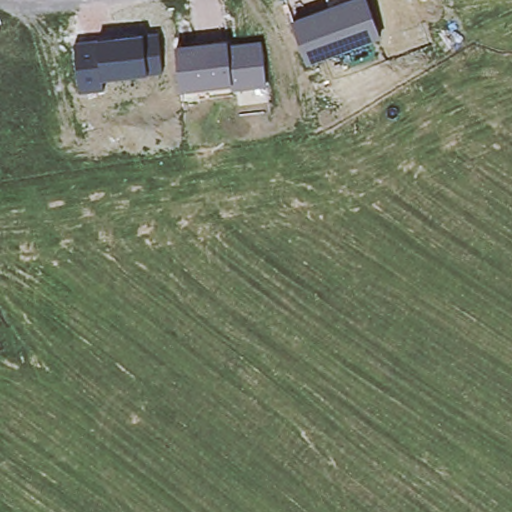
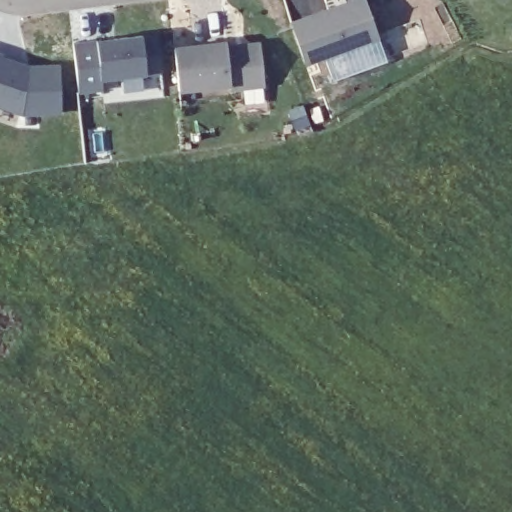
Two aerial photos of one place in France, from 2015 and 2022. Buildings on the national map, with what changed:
unchanged [(353,0),(367,0),(381,41),(308,65),(293,22),(353,0)]
unchanged [(76,43),(101,41),(146,36),(159,35),(163,66),(163,74),(147,72),(147,76),(102,81),(104,90),(81,92),(76,43)]
unchanged [(224,42),(260,39),(266,86),(231,88),(177,93),(172,47),(224,42)]
new [(2,57),(30,65),(60,62),(64,114),(23,115),(0,108),(0,50),(4,52),(2,57)]

